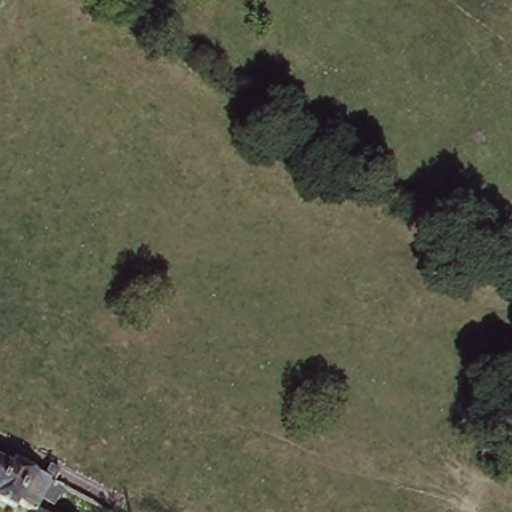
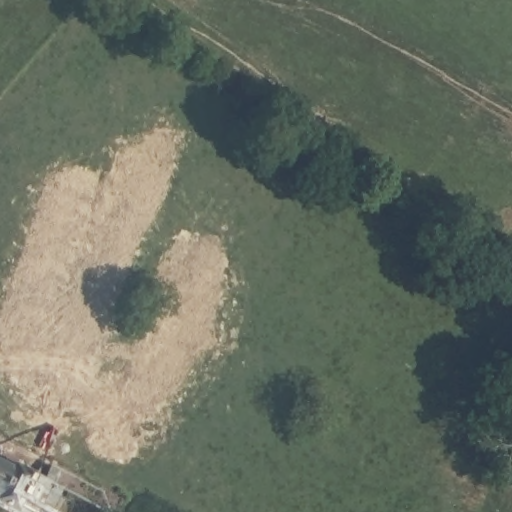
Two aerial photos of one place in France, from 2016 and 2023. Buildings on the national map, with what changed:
unchanged [(38,508),(45,512),(30,512),(0,496),(0,449),(29,463),(37,456),(60,468),(53,479),(38,508)]

